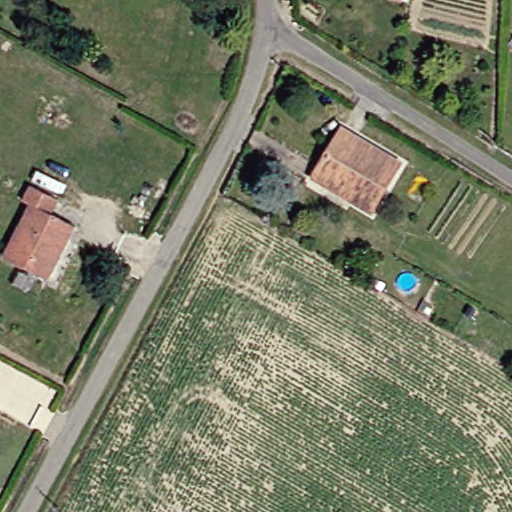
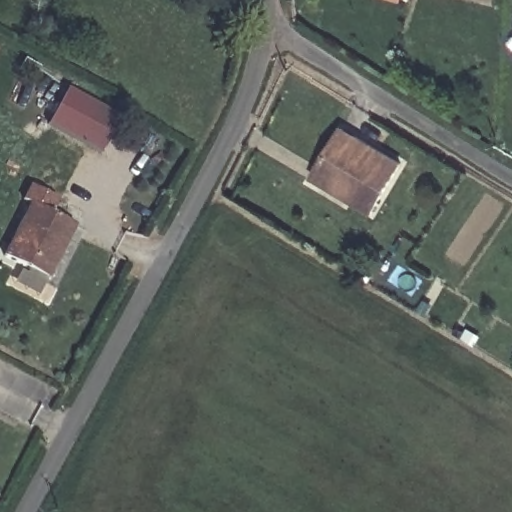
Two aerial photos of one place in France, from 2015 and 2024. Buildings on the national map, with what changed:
unchanged [(392,0),(407,0),(406,3),(392,0)]
unchanged [(508,115),(512,86),(512,115),(508,115)]
new [(121,118),(101,155),(47,126),(68,89),(121,118)]
unchanged [(308,167),(336,125),(396,160),(365,212),(344,199),(302,176),(308,167)]
unchanged [(0,257),(0,239),(21,201),(11,196),(19,181),(50,197),(41,213),(65,225),(42,267),(37,277),(22,269),(0,257)]

